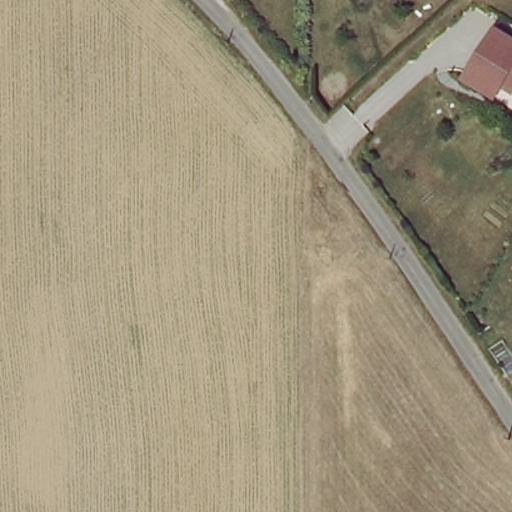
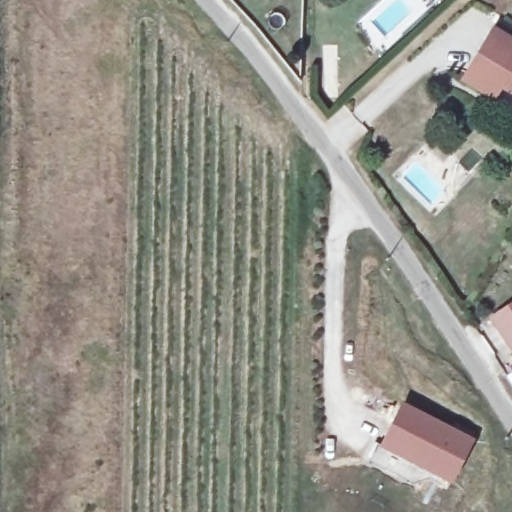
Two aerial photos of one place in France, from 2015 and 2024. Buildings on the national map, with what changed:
unchanged [(512,94),(499,87),(491,97),(459,80),(489,28),(512,42),(512,94)]
new [(512,310),(512,348),(494,322),(512,310)]
new [(367,463),(377,445),(379,449),(402,403),(473,440),(448,484),(429,475),(429,480),(410,485),(367,463)]

